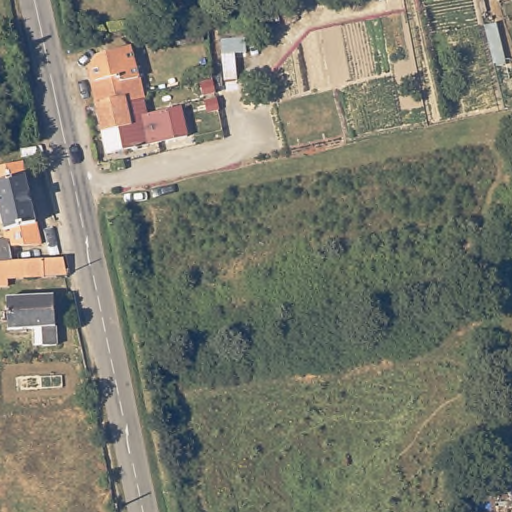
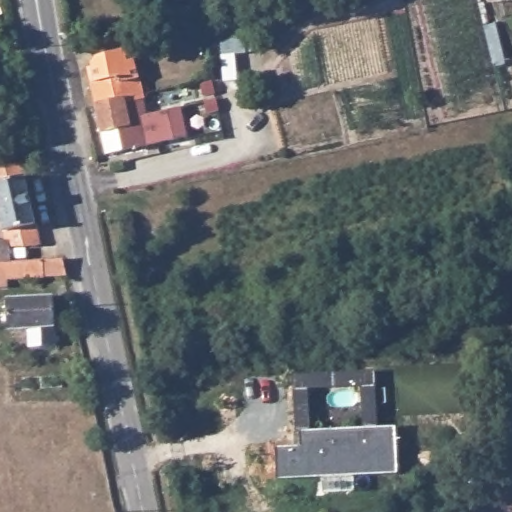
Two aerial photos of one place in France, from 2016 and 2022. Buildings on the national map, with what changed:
unchanged [(92,68),(97,66),(97,64),(101,56),(134,47),(145,96),(146,101),(129,105),(125,101),(118,102),(101,105),(95,82),(92,68)]
unchanged [(118,102),(125,101),(129,105),(146,101),(150,116),(184,108),(192,136),(113,156),(101,105),(118,102)]
unchanged [(45,245),(12,249),(2,208),(0,208),(0,166),(25,161),(45,245)]
unchanged [(73,276),(49,276),(49,279),(13,279),(11,287),(0,287),(0,262),(48,261),(69,261),(73,276)]
unchanged [(54,297),(56,346),(36,347),(35,329),(9,329),(7,299),(54,297)]
new [(276,447),(300,446),(300,431),(396,427),(398,475),(278,479),(276,447)]

